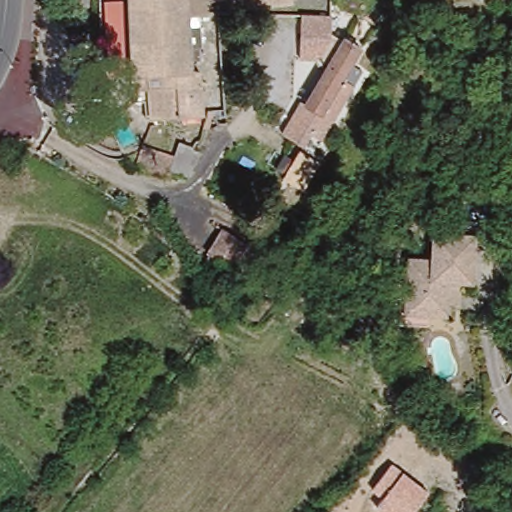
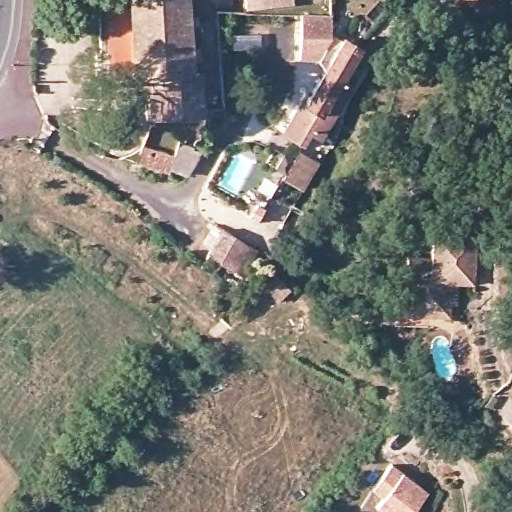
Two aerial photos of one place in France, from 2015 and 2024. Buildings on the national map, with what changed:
unchanged [(121,75),(119,1),(119,0),(205,0),(206,25),(180,25),(181,76),(190,76),(190,122),(137,123),(130,123),(130,93),(121,93),(121,76),(121,75)]
unchanged [(208,12),(208,0),(217,0),(218,12),(208,12)]
unchanged [(267,0),(323,0),(324,2),(322,2),(267,0)]
unchanged [(119,1),(121,75),(99,75),(97,1),(119,1)]
unchanged [(319,58),(301,57),(306,12),(335,13),(332,40),(343,42),(327,65),(319,58)]
unchanged [(302,105),(327,65),(343,42),(357,51),(318,115),(302,105)]
unchanged [(285,127),(291,118),(306,126),(300,136),(285,127)]
unchanged [(197,154),(184,175),(163,164),(174,140),(197,154)]
unchanged [(267,161),(276,149),(289,155),(281,169),(267,161)]
unchanged [(225,275),(216,268),(205,283),(197,278),(208,263),(195,254),(207,237),(199,231),(205,222),(234,242),(244,250),(225,275)]
unchanged [(458,300),(460,313),(414,318),(407,261),(431,258),(427,232),(471,227),(477,276),(460,278),(463,300),(458,300)]
unchanged [(271,303),(260,290),(255,285),(266,273),(269,276),(282,291),(271,303)]
unchanged [(429,493),(414,512),(379,512),(375,510),(384,500),(372,490),(393,465),(429,493)]

